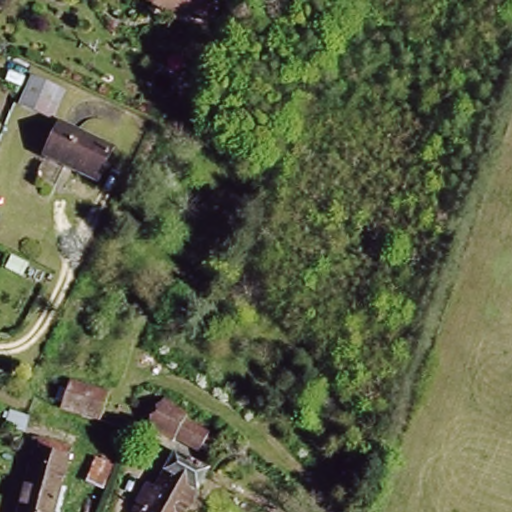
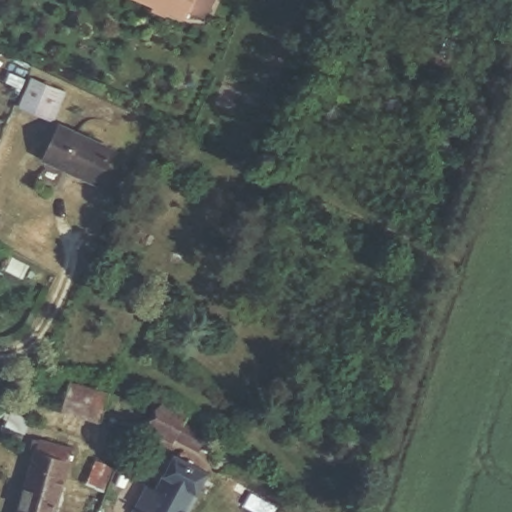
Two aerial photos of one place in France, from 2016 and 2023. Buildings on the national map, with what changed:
unchanged [(190,12),(186,22),(140,0),(213,0),(206,19),(190,12)]
unchanged [(109,149),(97,179),(43,157),(55,127),(109,149)]
unchanged [(104,388),(98,407),(65,396),(71,377),(104,388)]
unchanged [(163,395),(215,420),(204,449),(149,426),(163,395)]
unchanged [(29,432),(64,437),(53,510),(68,511),(67,512),(16,512),(29,432)]
unchanged [(173,448),(213,466),(194,512),(145,512),(148,506),(133,500),(144,473),(159,480),(173,448)]

